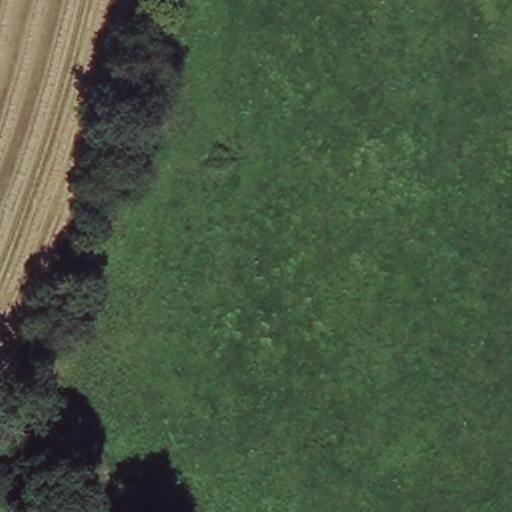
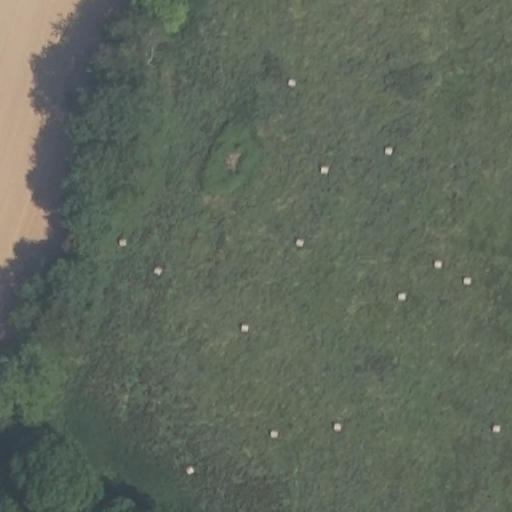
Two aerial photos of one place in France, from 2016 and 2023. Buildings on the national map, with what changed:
unchanged [(231,152),(224,172),(207,166),(214,146),(231,152)]

